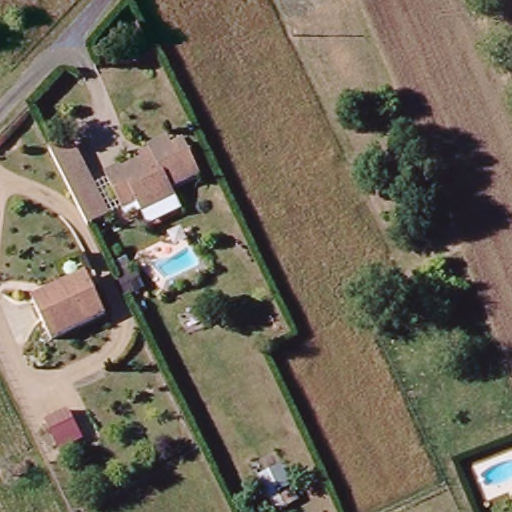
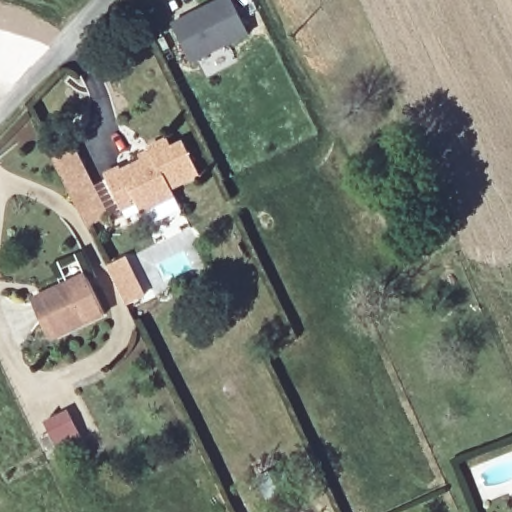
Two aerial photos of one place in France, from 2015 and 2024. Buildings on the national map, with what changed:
new [(233,0),(250,36),(193,64),(172,23),(221,0),(233,0)]
unchanged [(110,218),(88,228),(49,147),(72,136),(110,218)]
unchanged [(138,201),(124,208),(108,177),(154,154),(150,147),(169,138),(174,146),(185,140),(201,174),(173,187),(177,195),(156,205),(143,211),(138,201)]
unchanged [(83,275),(102,314),(52,339),(31,298),(57,286),(58,288),(83,275)]
unchanged [(455,277),(458,282),(451,285),(457,301),(448,305),(437,280),(447,275),(448,280),(455,277)]
unchanged [(65,405),(79,434),(55,446),(41,416),(65,405)]

